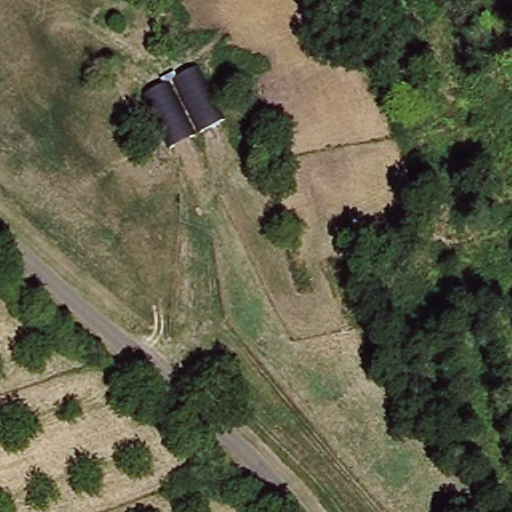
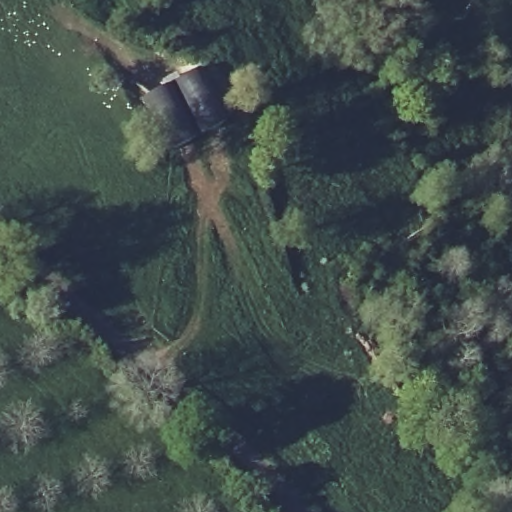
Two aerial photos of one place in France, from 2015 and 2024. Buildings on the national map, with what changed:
unchanged [(168,151),(140,99),(196,72),(225,125),(168,151)]

